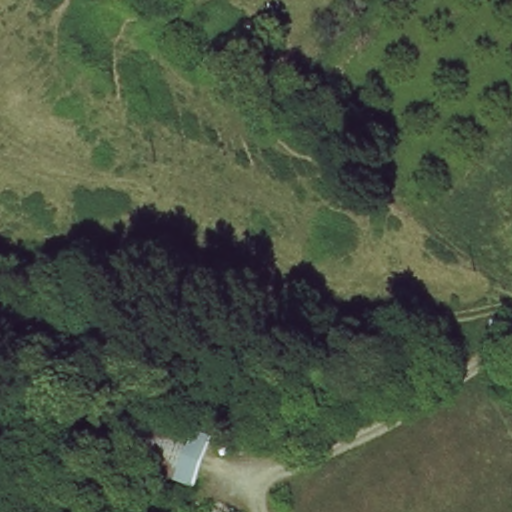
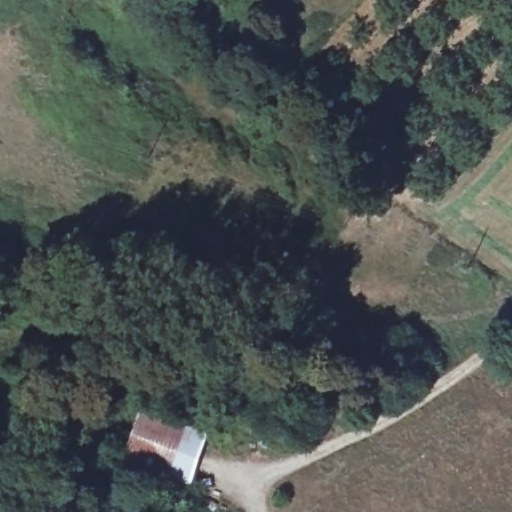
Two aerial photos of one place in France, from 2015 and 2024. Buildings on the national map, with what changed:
unchanged [(199,489),(130,469),(152,416),(215,446),(199,489)]

